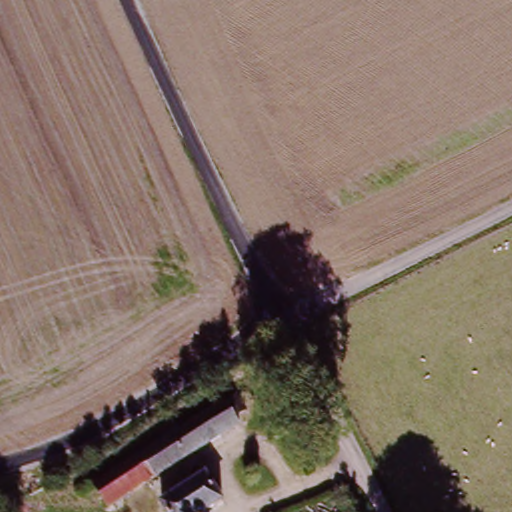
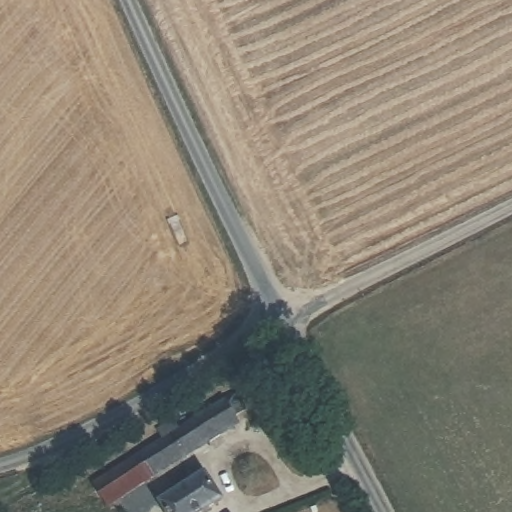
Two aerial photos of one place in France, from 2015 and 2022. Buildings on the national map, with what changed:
unchanged [(238,416),(242,422),(110,506),(95,482),(163,440),(158,427),(176,418),(183,427),(239,393),(249,409),(238,416)]
unchanged [(221,503),(207,512),(163,512),(159,506),(204,478),(221,503)]

